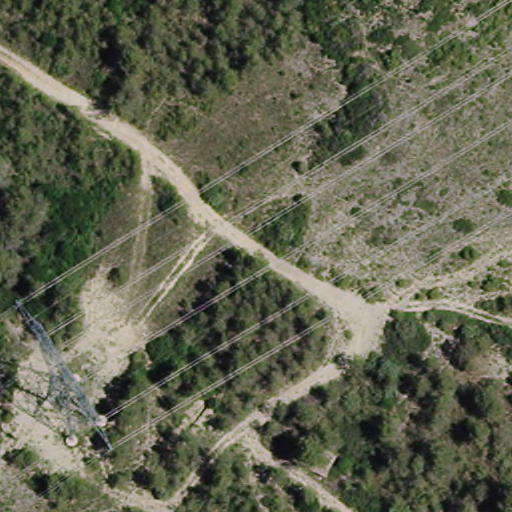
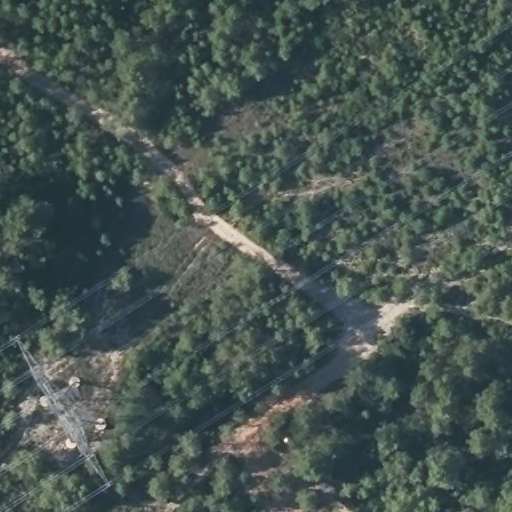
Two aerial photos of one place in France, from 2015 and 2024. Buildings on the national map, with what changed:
unchanged [(339,462),(330,478),(314,470),(321,452),(339,462)]

